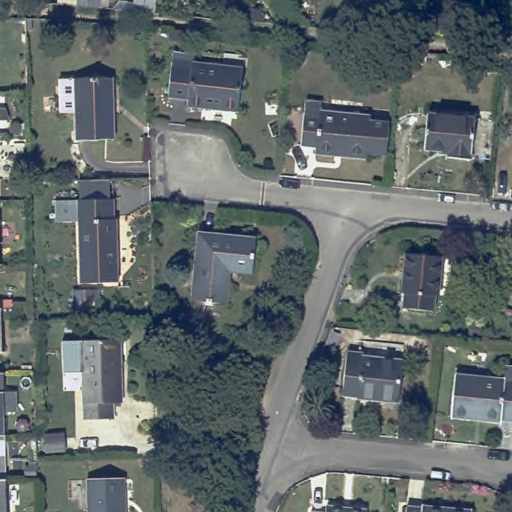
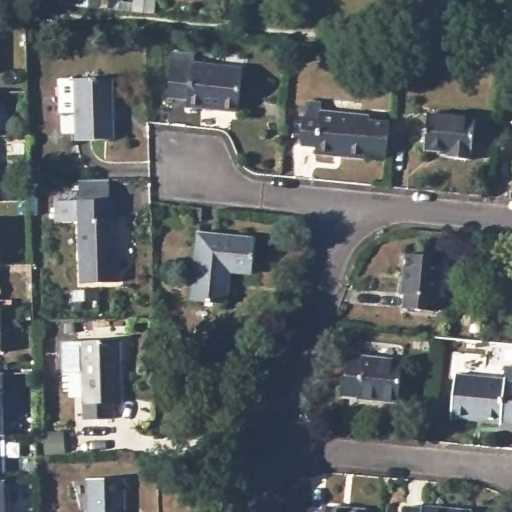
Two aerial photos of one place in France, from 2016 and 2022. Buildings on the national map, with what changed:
unchanged [(99,0),(98,5),(78,4),(78,0),(99,0)]
unchanged [(369,11),(390,13),(388,32),(367,30),(369,11)]
unchanged [(395,17),(414,20),(413,32),(393,30),(395,17)]
unchanged [(512,29),(512,44),(499,43),(500,27),(512,29)]
unchanged [(176,65),(246,71),(241,114),(191,109),(192,102),(173,100),(176,65)]
unchanged [(112,75),(113,137),(76,139),(74,77),(112,75)]
unchanged [(365,152),(365,156),(315,152),(316,145),(300,144),(304,99),(319,100),(319,108),(368,114),(368,120),(388,122),(385,155),(365,152)]
unchanged [(428,111),(474,115),(470,157),(447,155),(448,150),(424,147),(428,111)]
unchanged [(113,223),(115,223),(117,285),(81,286),(77,225),(55,225),(54,205),(79,205),(78,183),(108,182),(109,204),(112,204),(113,223)]
unchanged [(203,237),(259,242),(255,276),(234,275),(230,306),(196,303),(203,237)]
unchanged [(405,253),(442,256),(438,295),(435,295),(433,309),(403,306),(404,291),(401,291),(405,253)]
unchanged [(1,312),(3,356),(0,356),(0,313),(1,312)]
unchanged [(92,376),(72,377),(71,345),(128,343),(130,407),(121,407),(121,423),(94,423),(92,376)]
unchanged [(351,355),(366,356),(366,360),(406,365),(402,407),(362,403),(361,401),(346,400),(351,355)]
unchanged [(509,381),(510,369),(512,369),(512,425),(506,424),(505,427),(456,422),(460,377),(509,381)]
unchanged [(2,396),(2,415),(0,416),(0,396),(2,396)]
unchanged [(122,483),(123,512),(87,512),(87,483),(122,483)]
unchanged [(310,510),(324,511),(325,504),(365,508),(365,512),(310,512),(310,510)]
unchanged [(405,505),(421,507),(421,505),(470,509),(470,512),(405,512),(405,505)]

